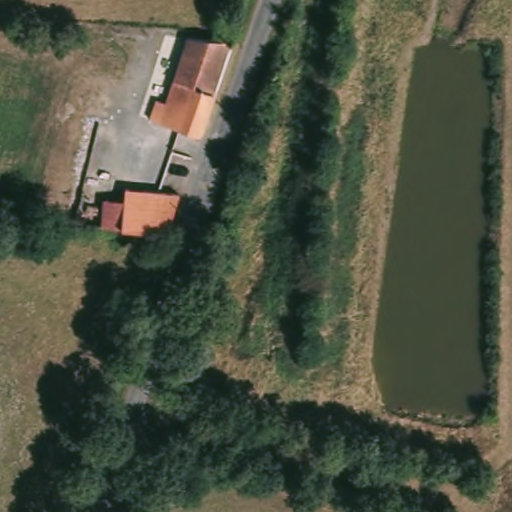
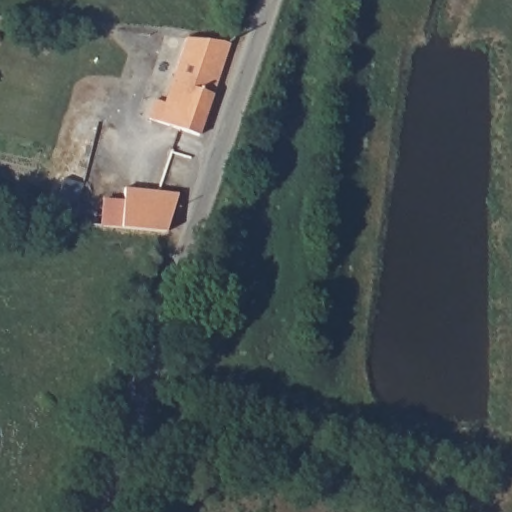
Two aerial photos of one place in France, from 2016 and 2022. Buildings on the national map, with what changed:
unchanged [(109,45),(108,58),(84,56),(85,44),(109,45)]
unchanged [(227,53),(224,61),(198,141),(149,126),(154,111),(163,114),(185,45),(222,46),(228,48),(227,53)]
unchanged [(172,205),(164,233),(125,229),(132,198),(172,205)]

